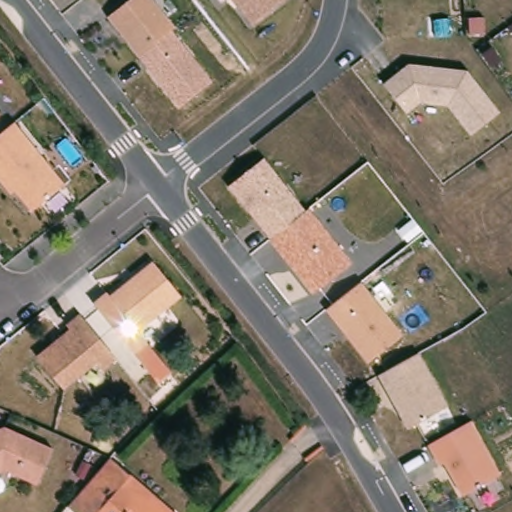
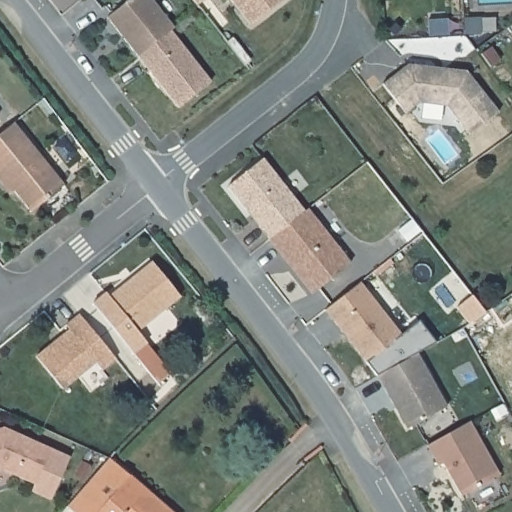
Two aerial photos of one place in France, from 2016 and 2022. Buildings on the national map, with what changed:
unchanged [(130,0),(156,0),(176,26),(172,30),(211,81),(180,105),(108,17),(130,0)]
unchanged [(283,0),(250,24),(233,0),(283,0)]
unchanged [(383,84),(408,65),(467,69),(500,111),(471,133),(447,103),(419,101),(406,113),(383,84)]
unchanged [(0,116),(0,107),(4,113),(0,116)]
unchanged [(0,132),(15,119),(66,180),(57,188),(33,208),(16,188),(12,191),(0,176),(0,132)]
unchanged [(228,188),(264,158),(351,263),(314,291),(228,188)]
unchanged [(139,330),(149,341),(136,352),(95,303),(108,292),(111,296),(154,260),(182,293),(139,330)]
unchanged [(328,311),(363,281),(405,334),(370,363),(328,311)]
unchanged [(66,387),(39,354),(72,326),(68,321),(82,310),(119,355),(106,366),(99,358),(66,387)]
unchanged [(379,375),(420,353),(448,406),(407,426),(379,375)]
unchanged [(444,463),(438,466),(429,446),(471,422),(500,473),(464,495),(444,463)]
unchanged [(53,444),(39,482),(0,467),(0,428),(7,425),(53,444)]
unchanged [(171,512),(70,512),(62,505),(103,455),(171,512)]

